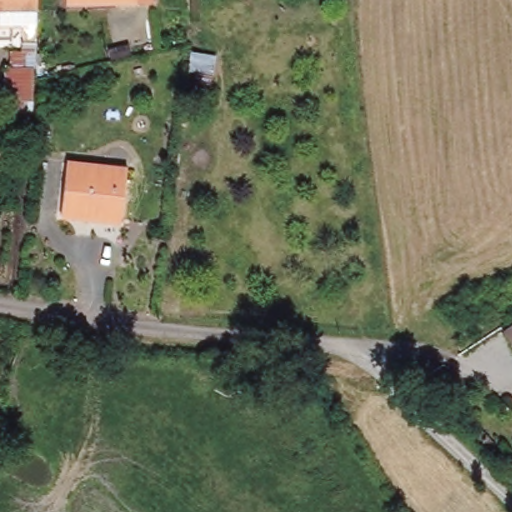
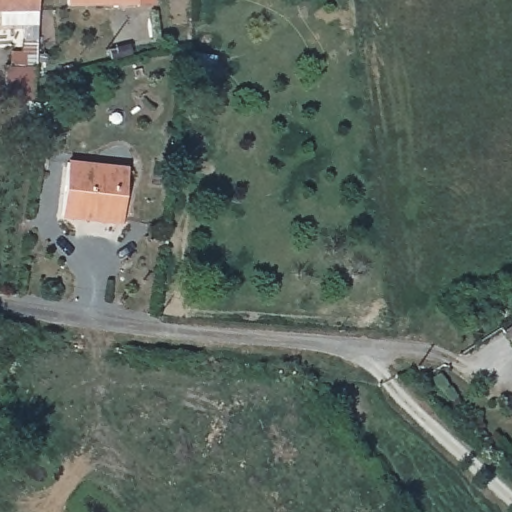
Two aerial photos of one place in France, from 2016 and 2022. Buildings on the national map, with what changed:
unchanged [(30,33),(0,30),(0,0),(32,0),(30,33)]
unchanged [(64,9),(64,0),(149,0),(149,9),(64,9)]
unchanged [(59,214),(69,160),(128,170),(116,225),(59,214)]
unchanged [(512,326),(505,312),(512,308),(512,326)]

